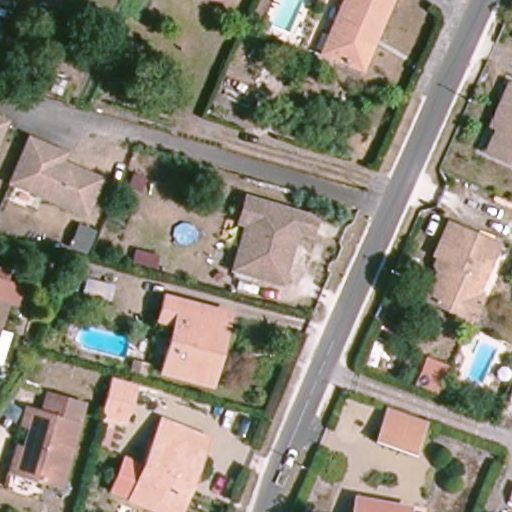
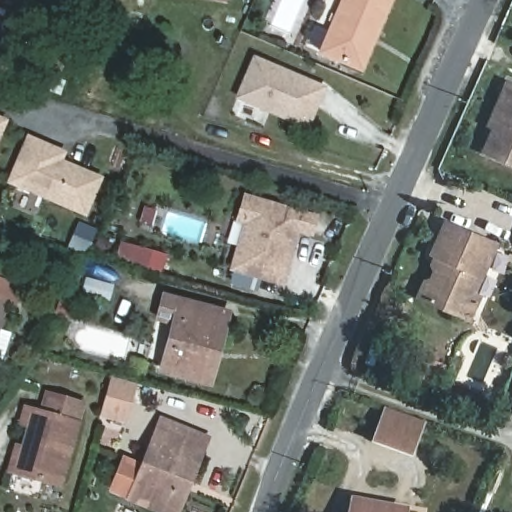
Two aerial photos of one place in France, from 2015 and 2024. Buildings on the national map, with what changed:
unchanged [(321,52),(343,0),(388,0),(358,69),(321,52)]
new [(255,60),(322,89),(306,126),(240,97),(255,60)]
unchanged [(494,123),(504,100),(510,85),(512,86),(512,164),(487,153),(499,125),(494,123)]
unchanged [(0,129),(0,122),(2,123),(0,129)]
unchanged [(11,180),(28,140),(60,154),(56,163),(97,180),(83,212),(11,180)]
unchanged [(279,282),(230,268),(243,224),(235,222),(242,198),(310,218),(306,233),(294,229),(290,243),(288,250),(279,282)]
unchanged [(423,280),(429,282),(436,267),(430,264),(434,255),(448,224),(474,235),(458,276),(445,307),(423,296),(417,294),(423,280)]
unchanged [(470,318),(462,314),(445,307),(458,276),(474,235),(497,245),(475,294),(479,296),(470,318)]
unchanged [(2,273),(0,281),(0,273),(2,273)]
unchanged [(111,286),(108,299),(80,292),(84,278),(111,286)]
unchanged [(16,287),(11,305),(3,303),(0,314),(0,283),(16,287)]
unchanged [(201,381),(159,370),(171,323),(156,319),(162,297),(226,314),(216,353),(208,383),(201,381)]
unchanged [(144,370),(141,380),(127,377),(130,367),(144,370)]
unchanged [(133,388),(122,424),(99,417),(109,381),(133,388)]
unchanged [(15,450),(21,452),(27,430),(20,428),(24,414),(40,418),(46,399),(80,409),(76,427),(59,489),(15,477),(9,475),(15,450)]
unchanged [(386,411),(421,423),(412,449),(377,436),(386,411)]
unchanged [(147,466),(166,420),(210,438),(179,512),(166,512),(115,491),(129,459),(147,466)]
unchanged [(355,505),(394,512),(354,512),(355,505)]

